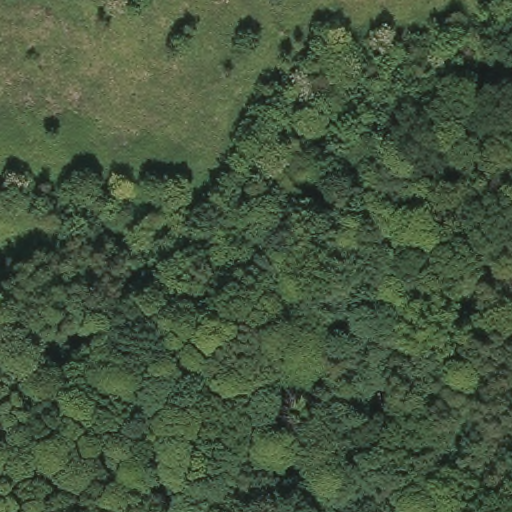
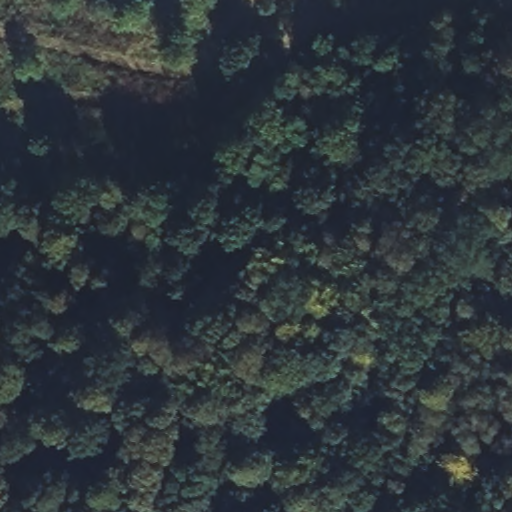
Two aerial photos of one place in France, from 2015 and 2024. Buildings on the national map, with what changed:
[]

